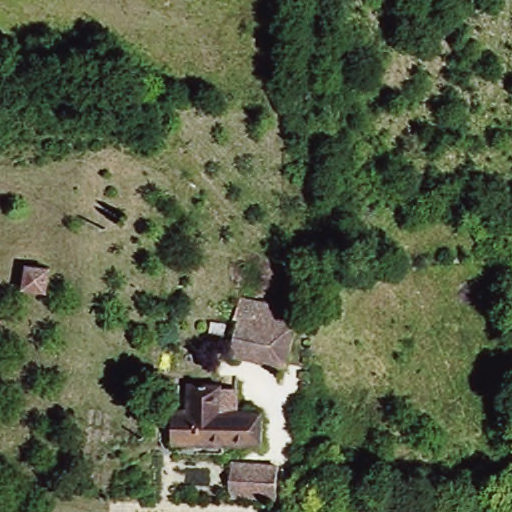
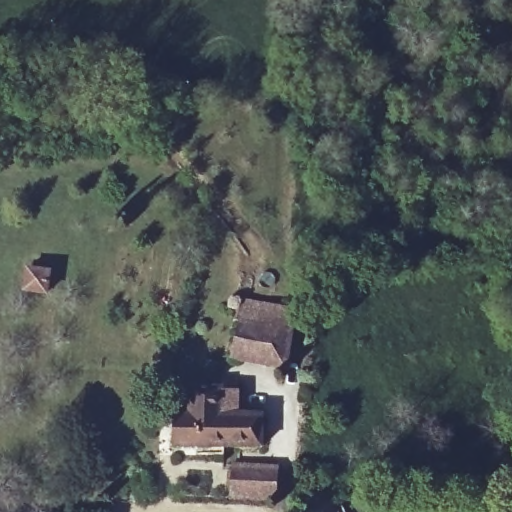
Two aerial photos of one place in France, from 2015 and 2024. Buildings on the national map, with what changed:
unchanged [(292,372),(236,368),(237,307),(285,307),(295,322),(296,343),(292,372)]
unchanged [(242,411),(262,410),(263,447),(171,450),(170,414),(184,414),(186,386),(223,386),(223,399),(242,400),(242,411)]
unchanged [(233,467),(281,467),(280,502),(233,503),(233,467)]

